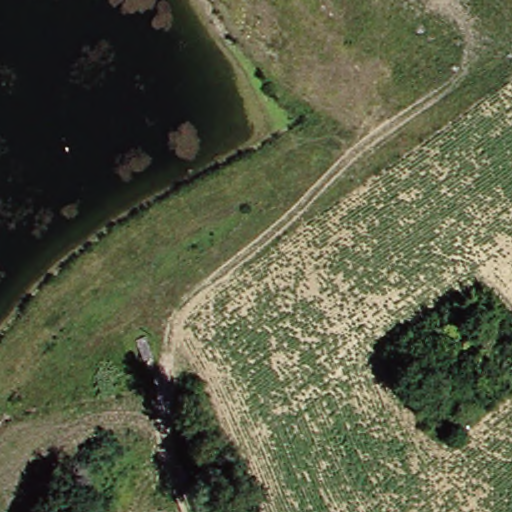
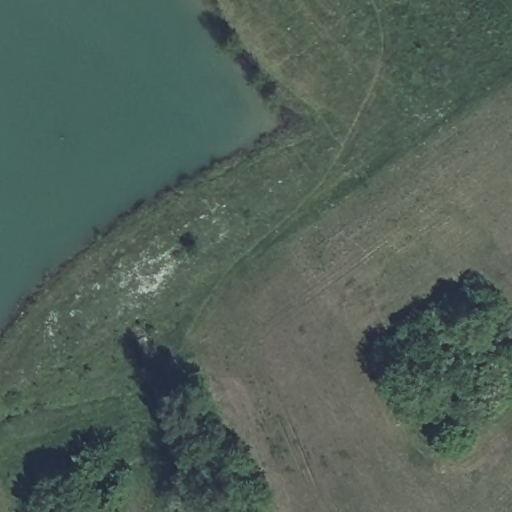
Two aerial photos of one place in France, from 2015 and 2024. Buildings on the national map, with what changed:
unchanged [(141,324),(151,344),(144,349),(132,329),(141,324)]

